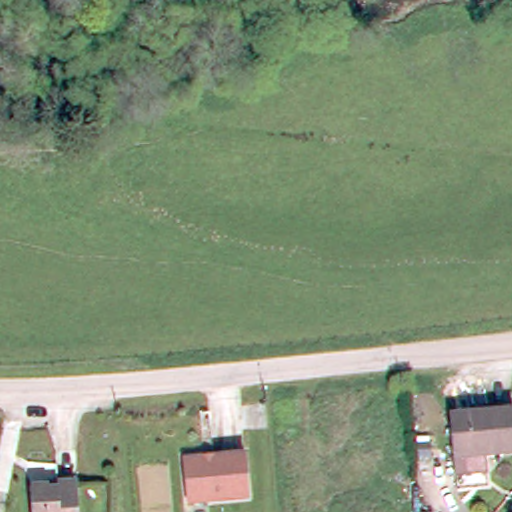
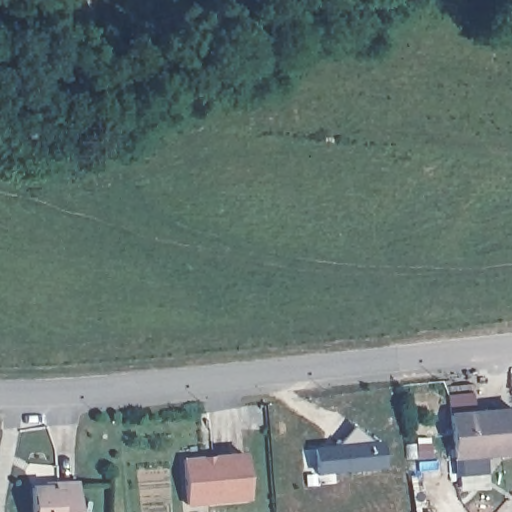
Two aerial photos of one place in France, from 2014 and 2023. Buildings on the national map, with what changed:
unchanged [(512,454),(484,458),(487,476),(456,480),(446,422),(512,411),(512,414),(512,454)]
new [(317,475),(314,447),(339,445),(354,426),(374,442),(382,441),(385,468),(317,475)]
unchanged [(239,455),(244,499),(182,506),(177,462),(239,455)]
unchanged [(28,492),(48,486),(49,483),(74,482),(76,512),(30,512),(28,492)]

